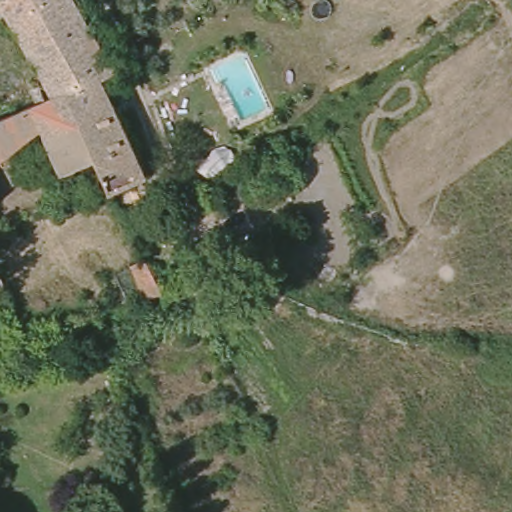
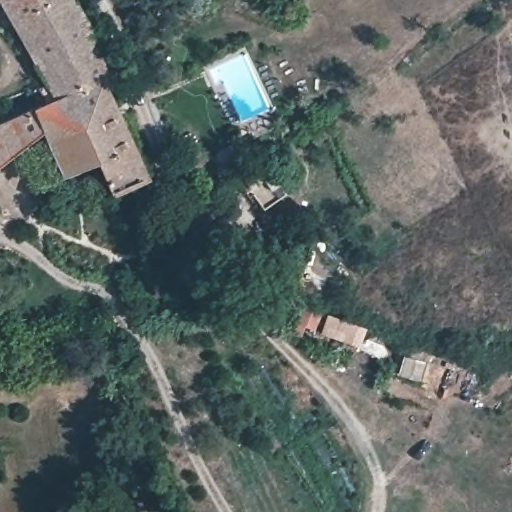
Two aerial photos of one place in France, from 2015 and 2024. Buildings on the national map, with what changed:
unchanged [(121,66),(107,71),(152,169),(117,184),(115,185),(102,152),(72,84),(59,90),(8,0),(83,0),(121,66)]
unchanged [(102,152),(68,167),(48,122),(38,99),(59,90),(72,84),(102,152)]
unchanged [(26,105),(38,99),(48,122),(0,159),(0,117),(26,105)]
unchanged [(168,293),(150,299),(136,267),(151,260),(168,293)]

